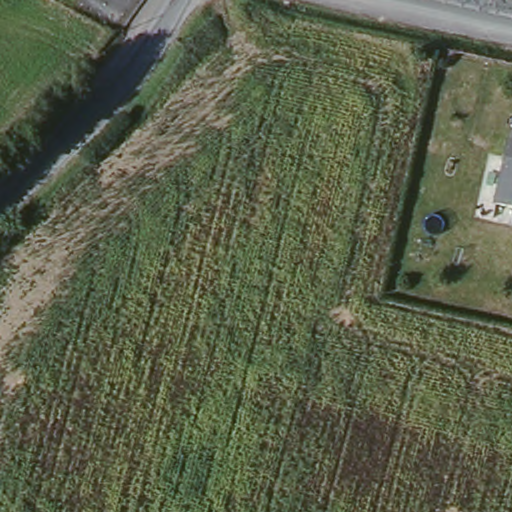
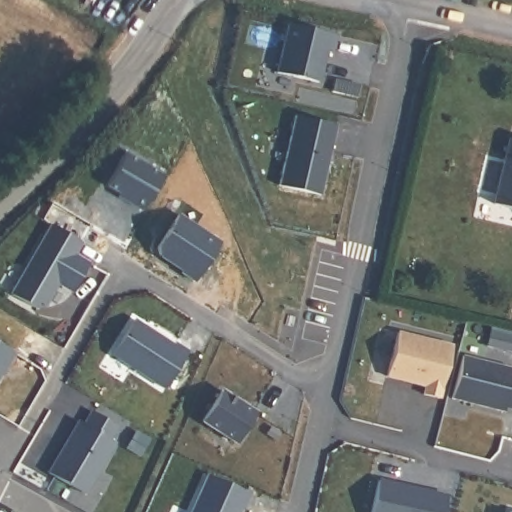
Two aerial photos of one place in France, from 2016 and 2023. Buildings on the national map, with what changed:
new [(337,35),(333,55),(326,54),(319,82),(277,74),(286,24),(337,35)]
new [(337,126),(321,195),(280,186),(295,115),(337,126)]
unchanged [(512,133),(512,202),(497,198),(508,152),(512,133)]
new [(162,172),(142,210),(116,197),(118,193),(105,186),(125,150),(162,172)]
new [(220,244),(197,282),(184,275),(185,271),(160,256),(157,248),(178,217),(220,244)]
new [(84,242),(78,255),(91,262),(73,295),(59,286),(46,308),(40,310),(12,294),(51,225),(84,242)]
new [(176,344),(178,341),(191,350),(166,392),(111,356),(136,317),(176,344)]
new [(455,343),(442,400),(422,395),(424,385),(388,378),(398,329),(455,343)]
new [(5,375),(2,373),(0,377),(0,344),(16,355),(5,375)]
new [(512,368),(512,409),(506,407),(506,410),(454,398),(464,355),(512,368)]
new [(258,413),(236,445),(200,423),(223,390),(258,413)]
new [(121,427),(114,438),(119,442),(85,496),(48,472),(81,420),(84,422),(92,410),(121,427)]
new [(246,510),(243,508),(241,512),(192,512),(209,473),(253,492),(246,510)]
new [(445,512),(372,512),(379,478),(449,493),(445,512)]

